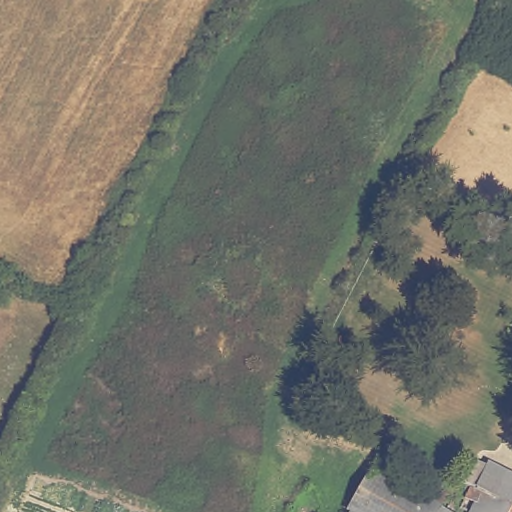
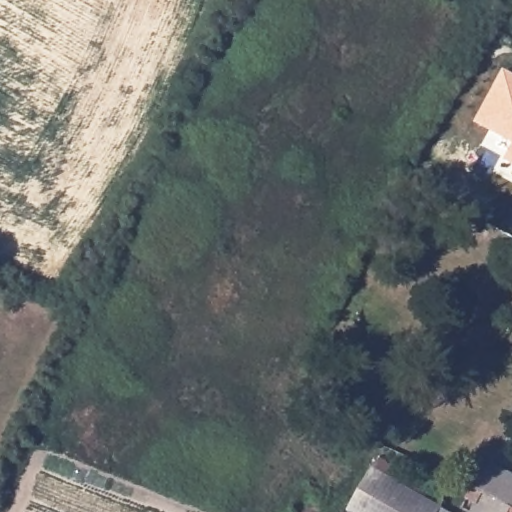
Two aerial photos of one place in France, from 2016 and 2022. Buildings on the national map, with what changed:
new [(512,71),(512,141),(475,120),(502,66),(512,71)]
new [(512,141),(512,162),(503,157),(512,141)]
unchanged [(512,480),(512,507),(468,485),(479,464),(512,480)]
unchanged [(360,467),(431,503),(427,512),(343,512),(338,510),(360,467)]
unchanged [(458,506),(467,488),(468,485),(512,507),(512,512),(469,512),(469,511),(458,506)]

